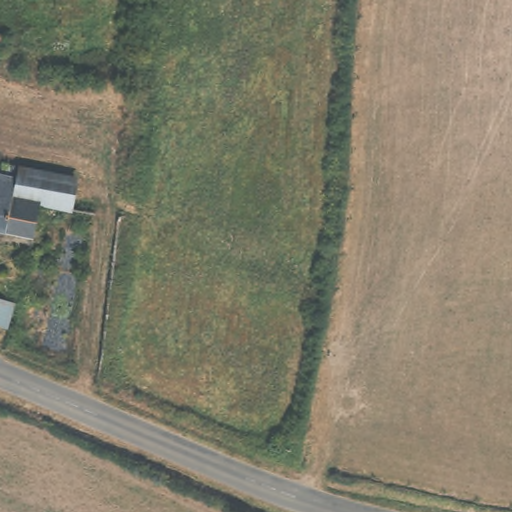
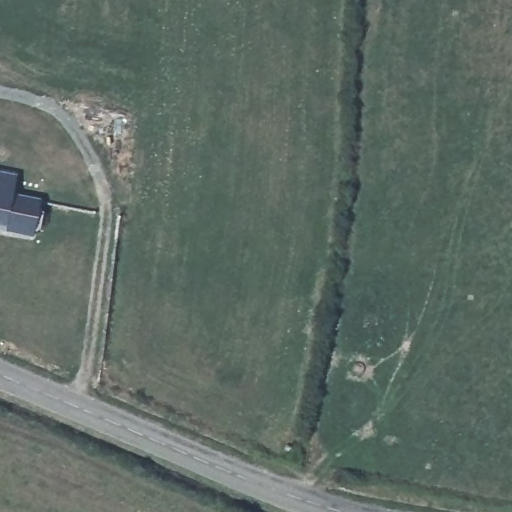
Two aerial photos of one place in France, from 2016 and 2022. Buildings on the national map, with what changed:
unchanged [(37,200),(29,237),(4,230),(11,198),(0,195),(0,171),(0,172),(15,175),(11,193),(37,200)]
unchanged [(4,230),(0,229),(0,195),(11,198),(4,230)]
demolished [(0,328),(0,298),(1,298),(19,302),(13,332),(0,328)]

